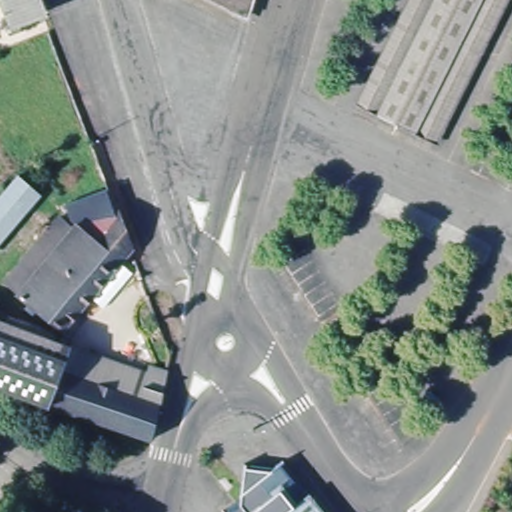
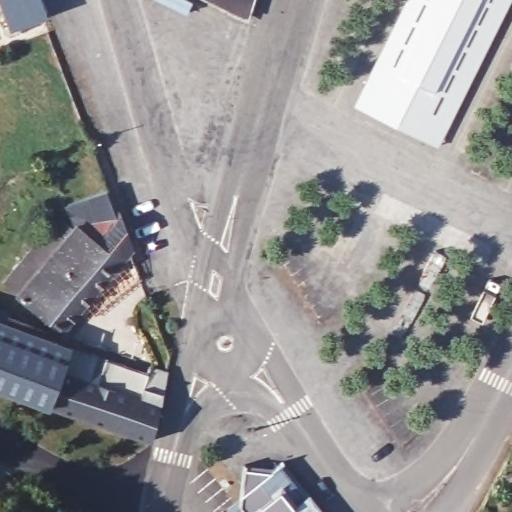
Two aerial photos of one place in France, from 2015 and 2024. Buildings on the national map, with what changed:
unchanged [(32,35),(14,41),(11,32),(15,31),(4,0),(41,0),(49,20),(30,26),(32,35)]
unchanged [(210,0),(252,0),(247,18),(210,0)]
unchanged [(359,108),(413,0),(503,0),(432,144),(359,108)]
demolished [(42,194),(0,243),(0,194),(17,174),(42,194)]
unchanged [(137,282),(101,314),(97,302),(66,333),(14,294),(71,227),(72,200),(109,180),(135,254),(137,282)]
unchanged [(77,347),(146,373),(150,363),(167,370),(152,445),(47,408),(0,391),(0,318),(77,347)]
unchanged [(244,506),(250,473),(249,470),(287,466),(313,499),(324,512),(236,512),(244,506)]

